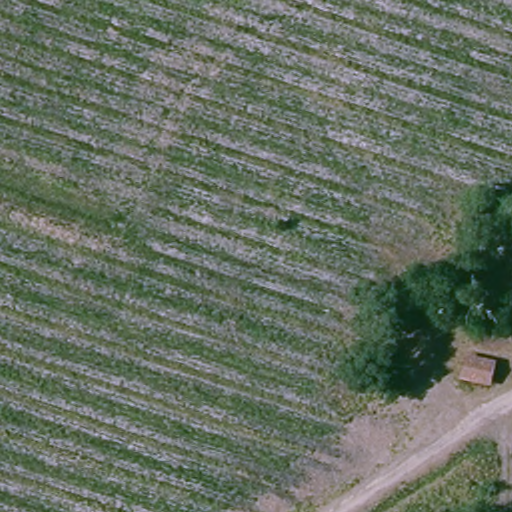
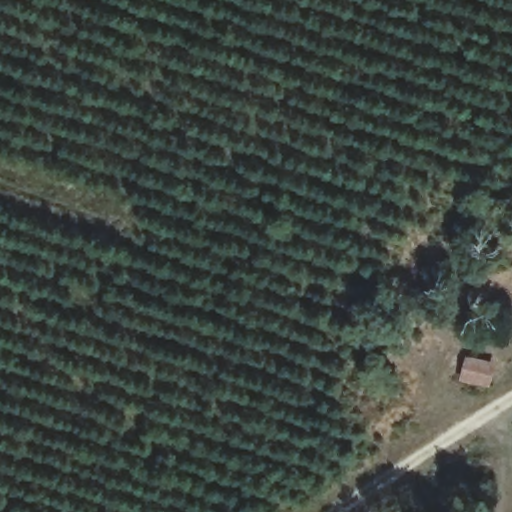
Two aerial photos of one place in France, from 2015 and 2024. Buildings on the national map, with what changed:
unchanged [(451,348),(502,354),(498,396),(447,392),(451,348)]

